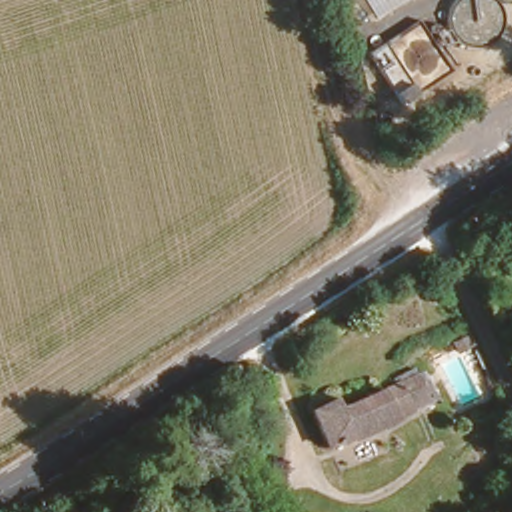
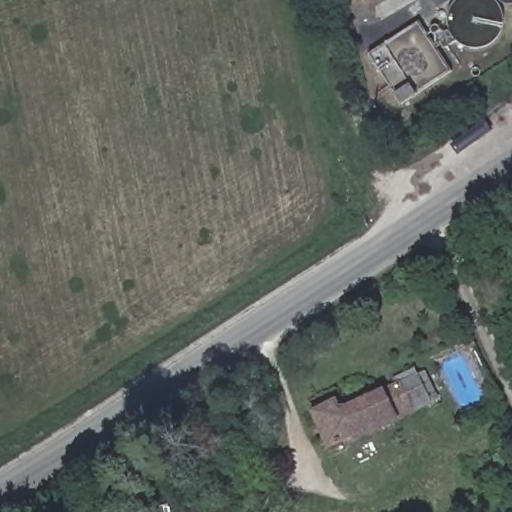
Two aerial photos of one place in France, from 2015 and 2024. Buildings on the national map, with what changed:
unchanged [(449,70),(399,103),(369,55),(421,22),(449,70)]
unchanged [(390,109),(393,110),(394,112),(394,114),(394,116),(394,119),(392,120),(389,121),(386,120),(384,119),(383,118),(382,115),(383,113),(384,110),(386,109),(388,109),(390,109)]
unchanged [(419,369),(433,401),(393,421),(375,389),(419,369)]
unchanged [(393,421),(352,441),(350,436),(327,448),(310,413),(338,397),(342,405),(375,389),(393,421)]

